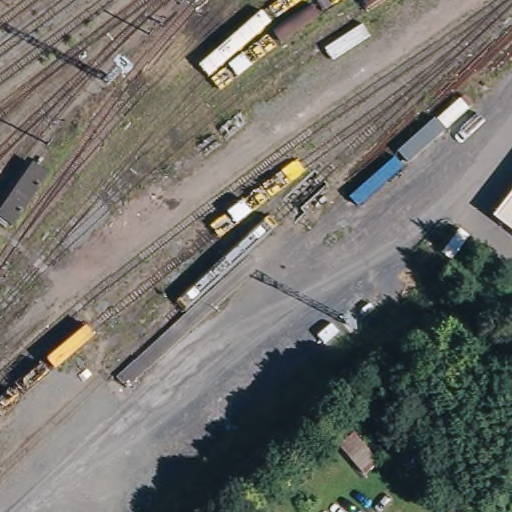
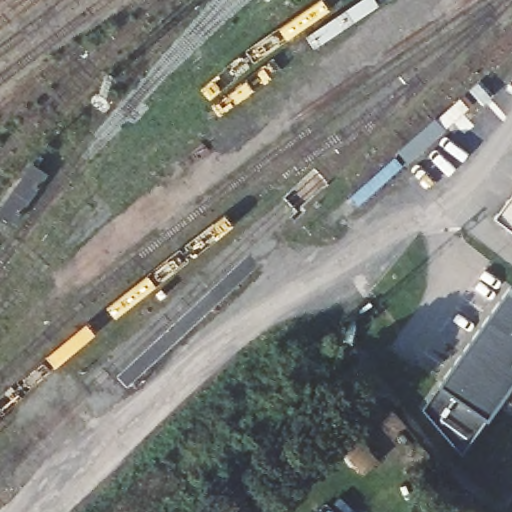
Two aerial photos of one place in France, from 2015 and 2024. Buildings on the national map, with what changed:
unchanged [(33,163),(52,175),(18,227),(0,216),(0,213),(33,163)]
unchanged [(512,214),(512,225),(507,220),(512,214)]
new [(512,287),(512,296),(507,292),(511,286),(512,287)]
new [(423,408),(457,360),(470,344),(507,292),(512,296),(512,386),(463,454),(423,408)]
unchanged [(353,432),(377,460),(364,472),(340,444),(353,432)]

